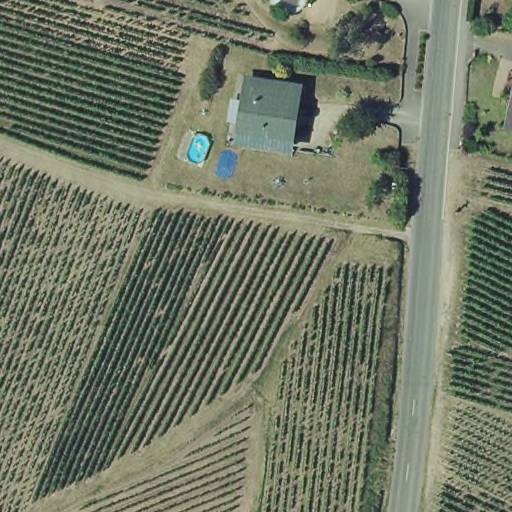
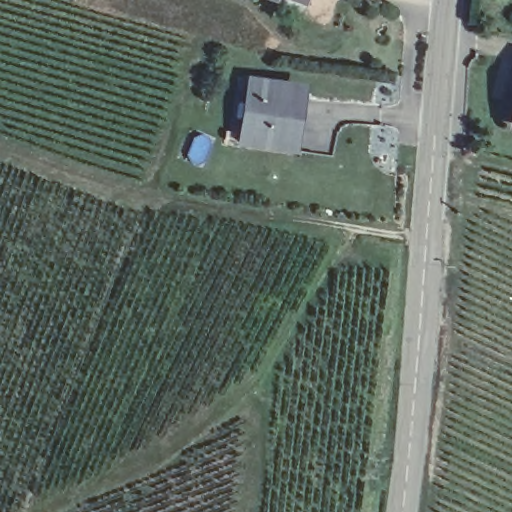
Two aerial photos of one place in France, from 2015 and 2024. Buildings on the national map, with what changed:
unchanged [(234,138),(236,123),(242,78),(290,85),(284,129),(282,144),(234,138)]

